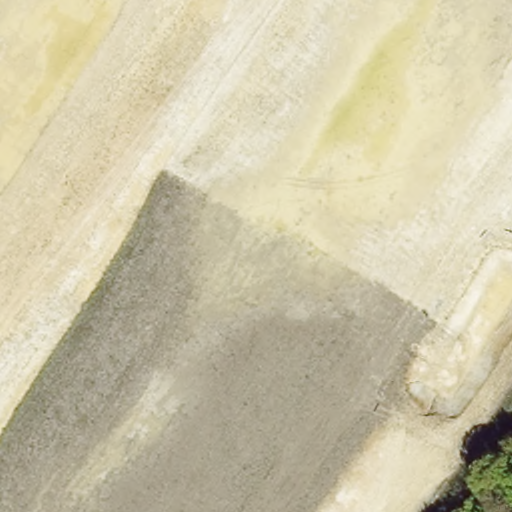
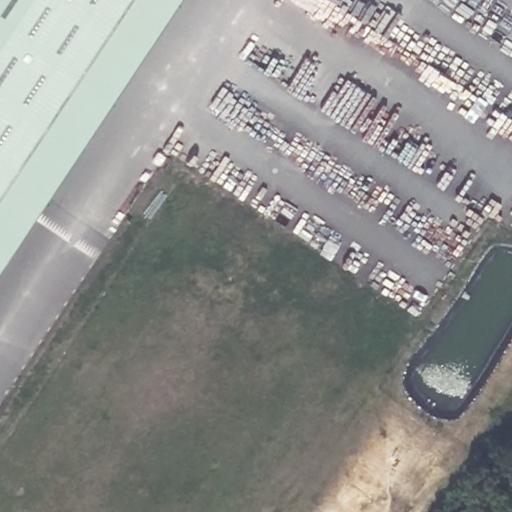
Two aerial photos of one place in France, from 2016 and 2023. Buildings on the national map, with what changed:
new [(179,0),(0,270),(0,0),(179,0)]

